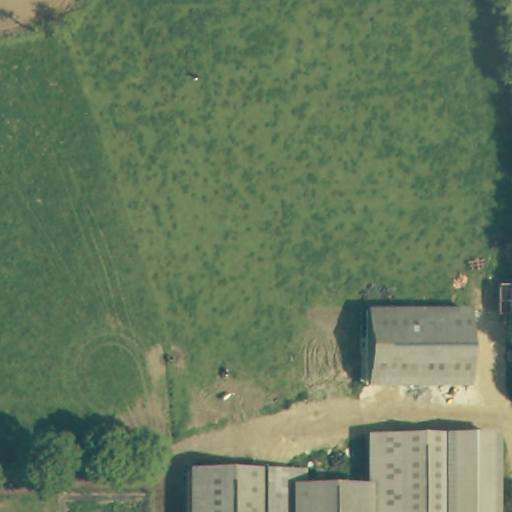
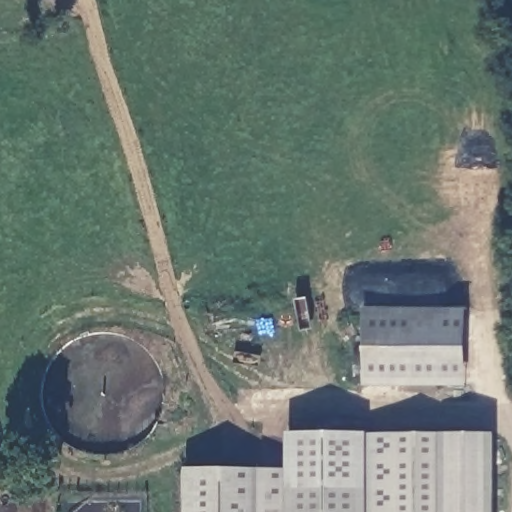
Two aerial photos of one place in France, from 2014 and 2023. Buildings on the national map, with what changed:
unchanged [(362,387),(363,310),(465,309),(465,387),(362,387)]
unchanged [(365,512),(364,487),(363,449),(363,437),(492,434),(492,443),(494,512),(365,512)]
new [(363,449),(364,487),(305,486),(305,470),(284,470),(287,435),(363,437),(363,449)]
unchanged [(287,512),(185,512),(185,469),(305,470),(305,486),(287,486),(287,512)]
unchanged [(364,487),(365,512),(287,512),(287,486),(364,487)]

